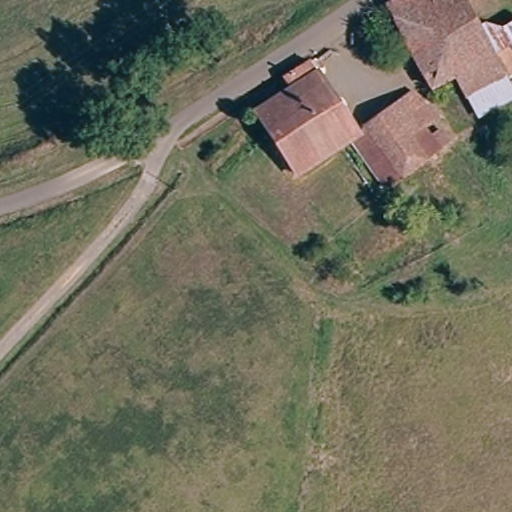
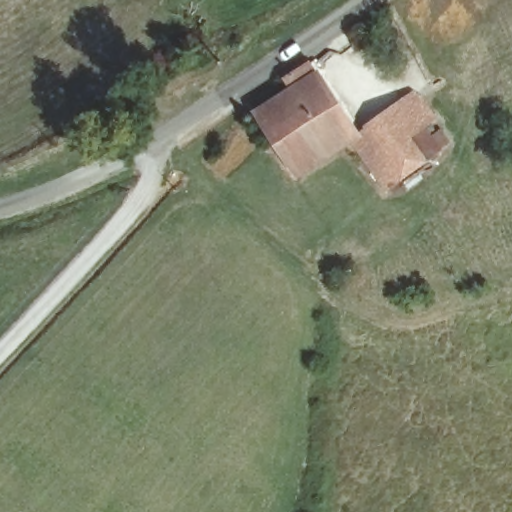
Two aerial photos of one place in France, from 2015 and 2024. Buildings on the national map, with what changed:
demolished [(478,118),(452,75),(431,86),(389,3),(394,0),(461,0),(485,37),(507,24),(512,20),(512,74),(509,76),(512,80),(512,100),(478,118)]
unchanged [(291,95),(283,86),(307,70),(357,138),(415,99),(436,126),(428,132),(442,151),(432,158),(388,191),(350,146),(299,177),(256,119),(291,95)]

